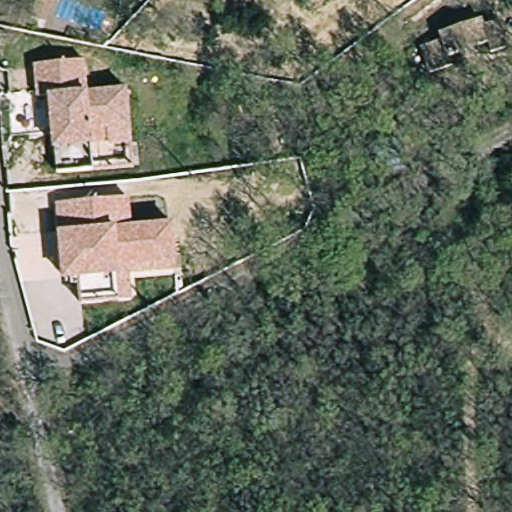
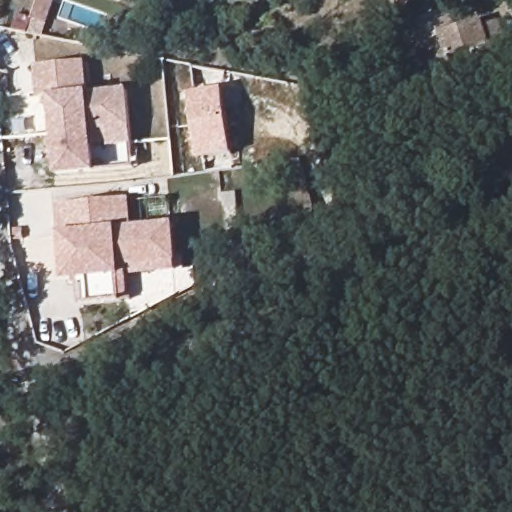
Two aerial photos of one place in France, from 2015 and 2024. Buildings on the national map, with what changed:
unchanged [(49,0),(52,1),(43,24),(30,19),(37,0),(49,0)]
unchanged [(480,19),(482,26),(499,21),(507,48),(492,53),(489,43),(447,57),(450,67),(430,73),(420,46),(441,39),(439,33),(480,19)]
unchanged [(82,88),(122,85),(129,162),(52,169),(45,92),(32,93),(29,61),(79,56),(82,88)]
new [(224,90),(235,155),(199,161),(189,95),(224,90)]
unchanged [(124,270),(126,297),(117,298),(75,301),(72,273),(59,274),(55,229),(52,199),(123,193),(125,223),(169,219),(172,256),(173,266),(124,270)]

